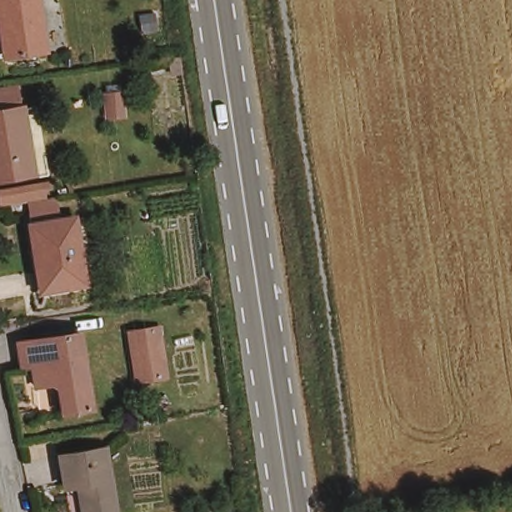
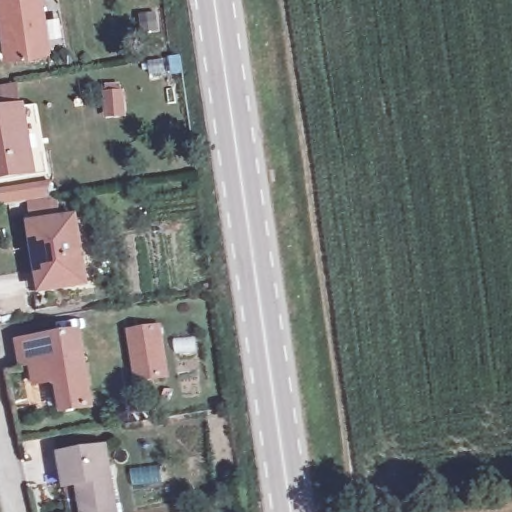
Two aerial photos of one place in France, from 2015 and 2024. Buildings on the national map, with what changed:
unchanged [(42,51),(2,55),(0,36),(0,0),(38,0),(42,51)]
unchanged [(40,170),(2,178),(0,170),(0,112),(30,107),(40,170)]
unchanged [(88,285),(36,292),(27,223),(80,216),(88,285)]
unchanged [(88,407),(56,411),(52,382),(33,384),(31,363),(17,365),(14,341),(78,331),(88,407)]
unchanged [(152,334),(157,369),(136,373),(132,337),(152,334)]
unchanged [(87,512),(82,483),(65,485),(60,456),(111,448),(120,512),(87,512)]

